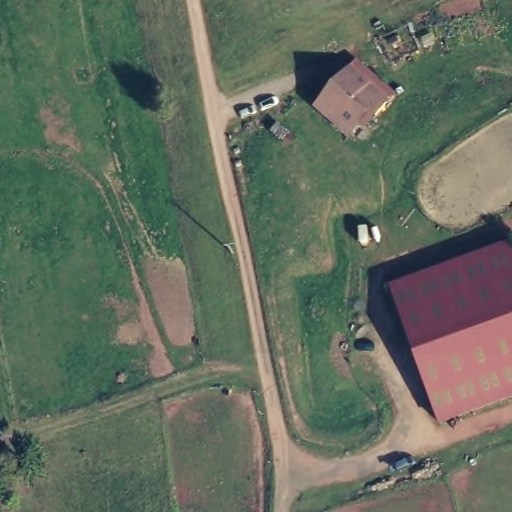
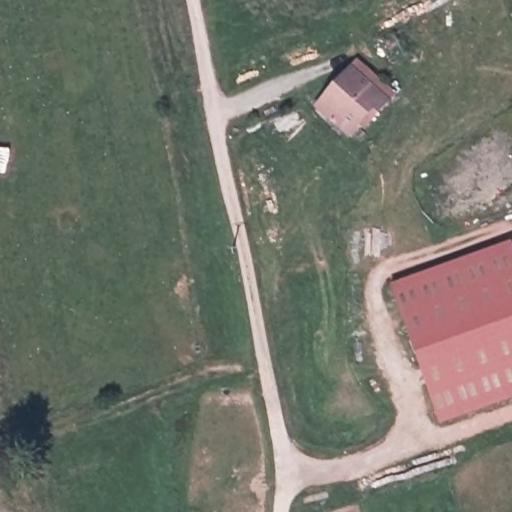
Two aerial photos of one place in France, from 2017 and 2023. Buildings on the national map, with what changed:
unchanged [(380,95),(360,120),(353,116),(343,129),(309,101),(341,63),(380,95)]
unchanged [(415,351),(390,284),(507,238),(512,253),(512,311),(415,351)]
unchanged [(442,422),(415,351),(512,311),(512,395),(442,422)]

